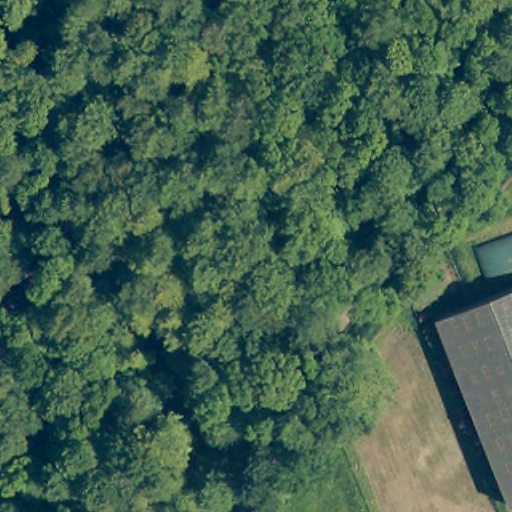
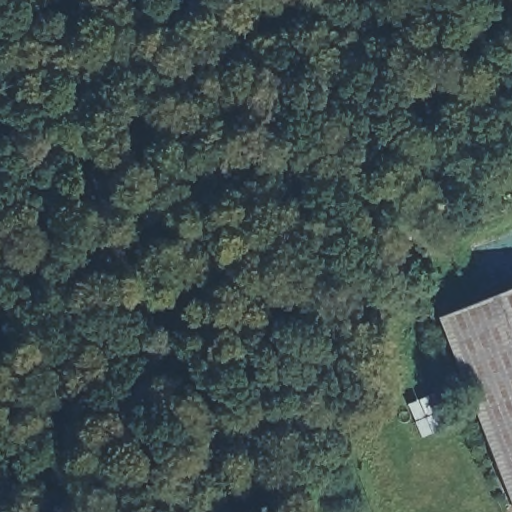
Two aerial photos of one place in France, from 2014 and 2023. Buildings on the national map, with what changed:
unchanged [(445,320),(512,293),(512,483),(445,320)]

